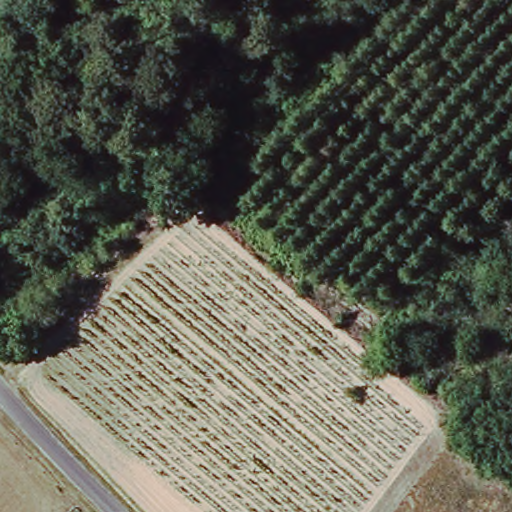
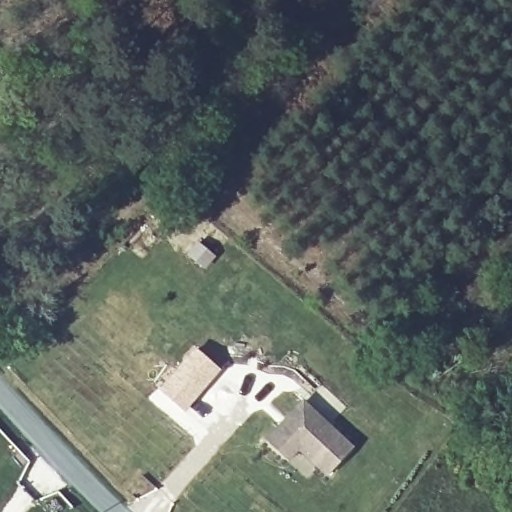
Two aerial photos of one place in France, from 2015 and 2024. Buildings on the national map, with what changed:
new [(161,389),(187,359),(209,379),(182,409),(161,389)]
new [(265,440),(304,398),(355,447),(327,476),(300,450),(289,462),(265,440)]

